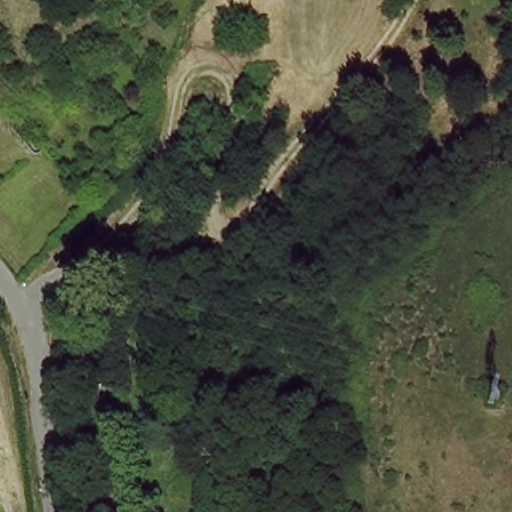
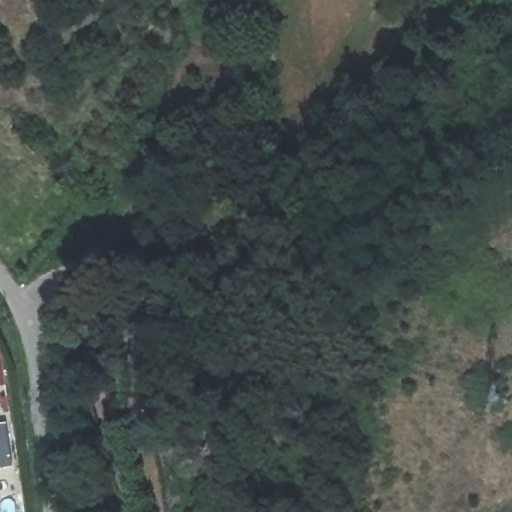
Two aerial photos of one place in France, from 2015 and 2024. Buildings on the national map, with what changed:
new [(12,468),(0,470),(0,424),(6,423),(12,468)]

